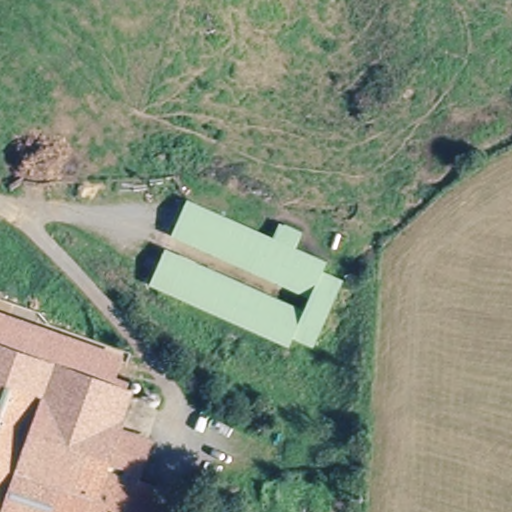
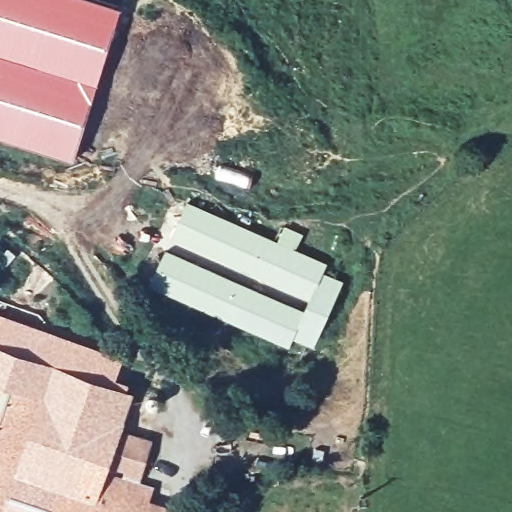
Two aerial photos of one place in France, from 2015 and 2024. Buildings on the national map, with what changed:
new [(123,6),(74,162),(0,139),(0,0),(104,0),(123,6)]
unchanged [(185,203),(325,263),(321,273),(310,297),(171,237),(185,203)]
unchanged [(157,268),(164,253),(303,313),(301,318),(299,324),(293,337),(289,346),(149,286),(157,268)]
unchanged [(321,273),(342,281),(323,325),(314,346),(308,344),(293,337),(299,324),(301,318),(303,313),(310,297),(321,273)]
unchanged [(120,356),(110,384),(0,347),(0,314),(120,355),(120,356)]
unchanged [(110,384),(128,391),(116,424),(105,457),(103,462),(85,512),(0,512),(0,347),(110,384)]
unchanged [(150,436),(137,469),(105,457),(116,424),(150,436)]
unchanged [(105,463),(155,480),(154,485),(150,498),(166,504),(164,512),(85,512),(103,462),(105,463)]

